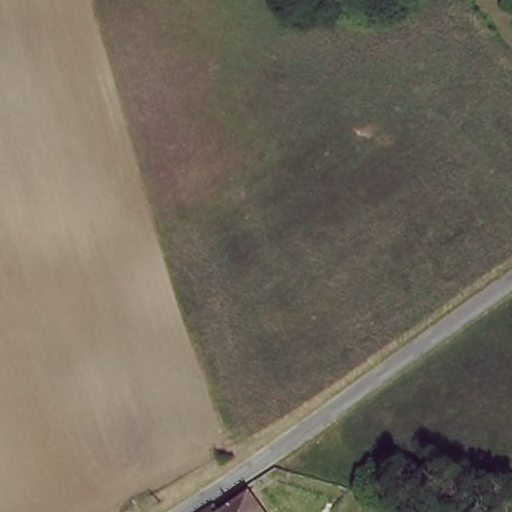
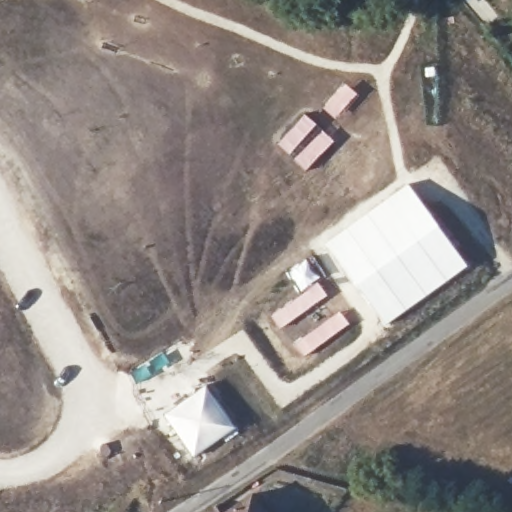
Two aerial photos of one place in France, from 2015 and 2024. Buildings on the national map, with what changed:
new [(304,113),(334,139),(305,170),(278,144),(304,113)]
new [(408,181),(467,265),(384,325),(324,242),(408,181)]
new [(207,383),(238,429),(194,457),(162,413),(207,383)]
unchanged [(258,512),(244,512),(253,506),(258,512)]
unchanged [(212,512),(211,512),(212,511),(212,512)]

